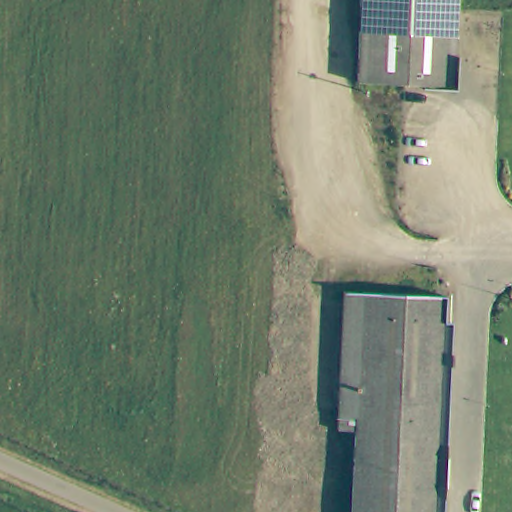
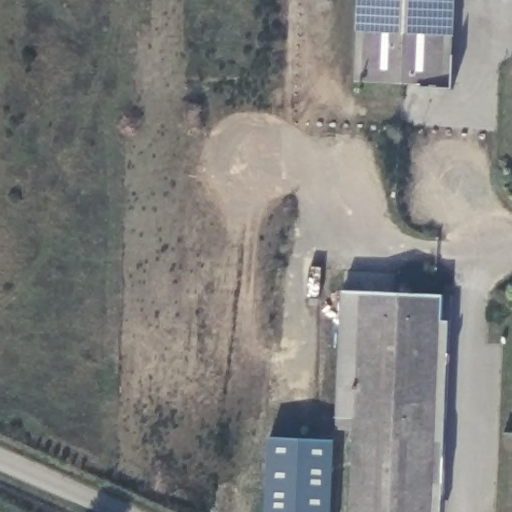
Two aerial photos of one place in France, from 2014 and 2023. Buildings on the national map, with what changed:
unchanged [(453,0),(449,86),(356,81),(361,0),(453,0)]
unchanged [(444,322),(452,322),(444,512),(347,512),(354,434),(337,432),(337,407),(343,307),(345,292),(445,295),(444,322)]
new [(332,512),(264,512),(267,437),(335,439),(332,512)]

